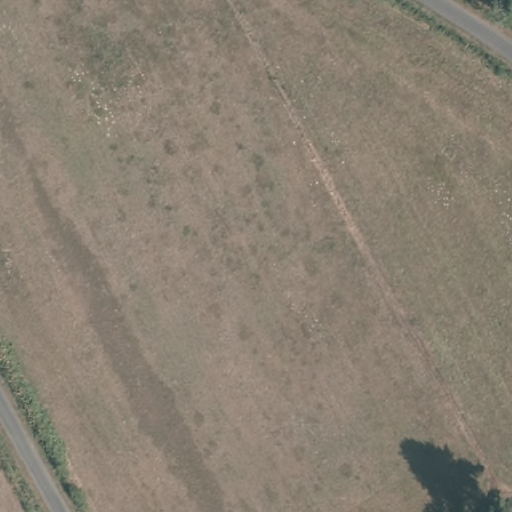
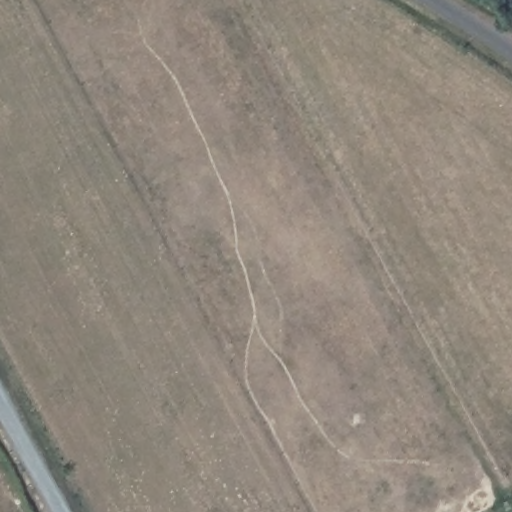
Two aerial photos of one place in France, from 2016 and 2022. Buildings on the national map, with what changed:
[]

